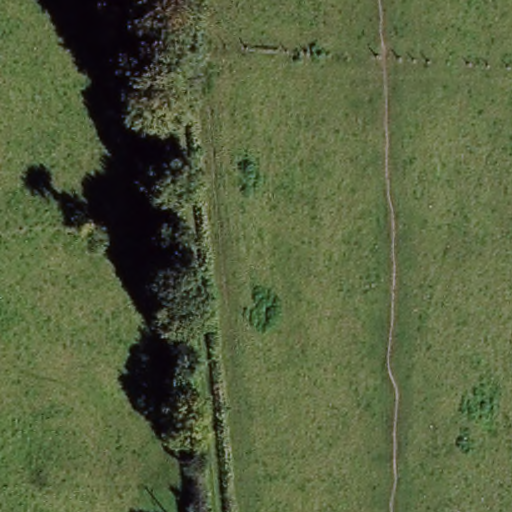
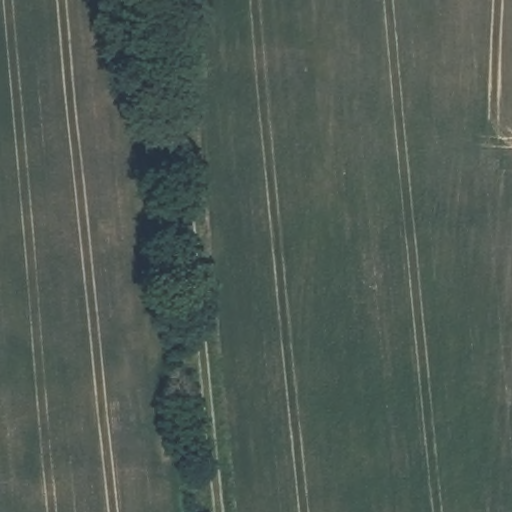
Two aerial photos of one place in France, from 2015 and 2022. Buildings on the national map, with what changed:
[]

